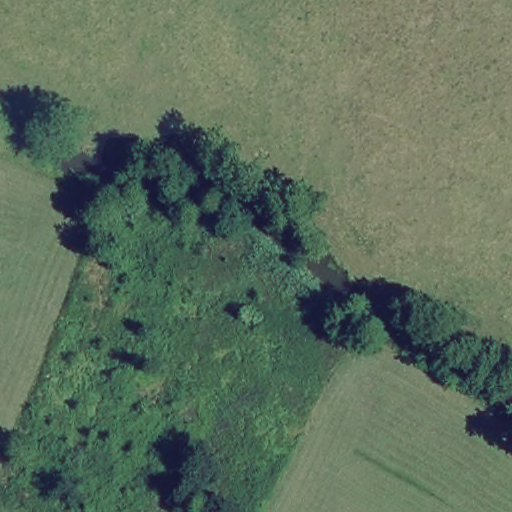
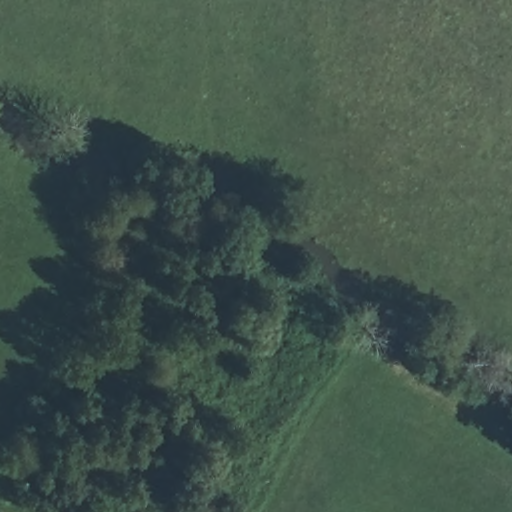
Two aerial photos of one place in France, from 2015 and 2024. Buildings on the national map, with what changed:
[]

